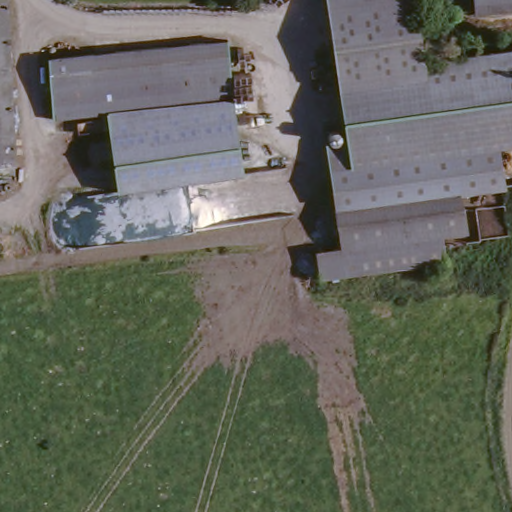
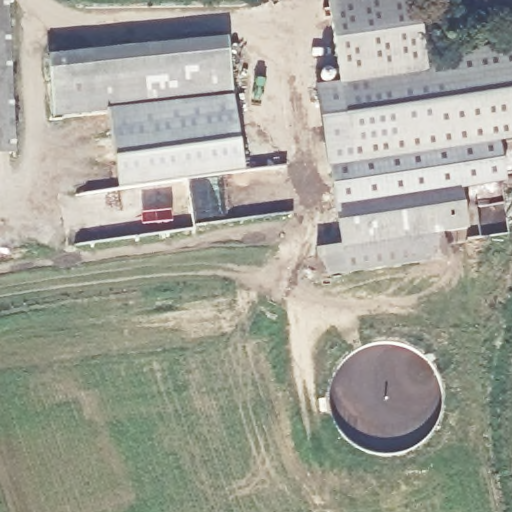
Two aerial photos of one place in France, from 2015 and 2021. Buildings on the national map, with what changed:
unchanged [(10,0),(18,154),(0,155),(0,0),(10,0)]
unchanged [(405,41),(372,47),(349,51),(340,11),(340,8),(338,0),(415,0),(417,39),(405,41)]
unchanged [(475,0),(512,0),(512,7),(475,9),(475,0)]
unchanged [(423,66),(335,80),(330,10),(340,8),(340,11),(349,51),(372,47),(405,41),(417,39),(423,66)]
unchanged [(225,34),(230,94),(110,107),(37,114),(34,84),(54,81),(50,53),(225,34)]
unchanged [(512,142),(496,145),(345,166),(338,125),(335,80),(423,66),(512,47),(512,142)]
unchanged [(230,94),(236,95),(241,172),(121,188),(110,107),(230,94)]
unchanged [(309,254),(337,249),(319,129),(338,125),(345,166),(496,145),(505,190),(459,198),(464,234),(440,238),(445,264),(312,281),(309,254)]

